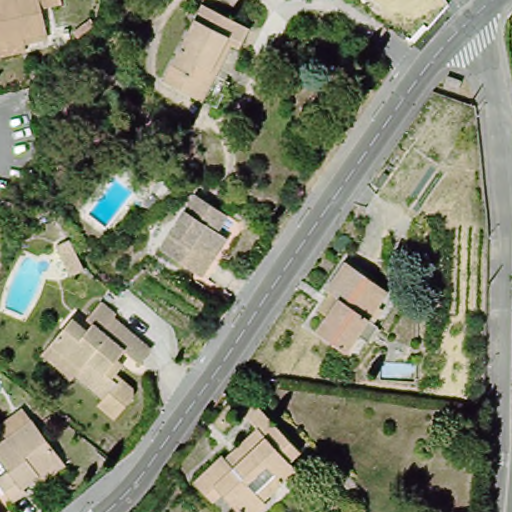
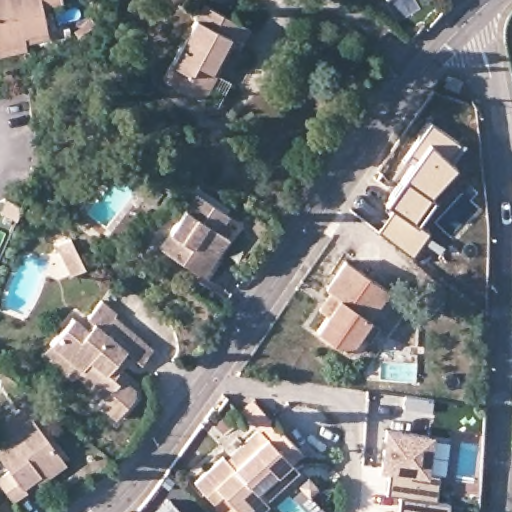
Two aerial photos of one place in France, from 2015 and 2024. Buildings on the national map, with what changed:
unchanged [(36,0),(41,21),(43,31),(20,35),(21,44),(0,48),(0,0),(36,0)]
unchanged [(158,75),(197,0),(199,0),(243,22),(232,43),(226,40),(211,68),(197,94),(158,75)]
unchanged [(448,76),(462,80),(460,91),(445,86),(448,76)]
new [(385,203),(415,161),(405,156),(428,121),(458,142),(460,140),(463,142),(448,160),(454,163),(427,193),(433,197),(415,222),(403,215),(391,208),(385,203)]
unchanged [(152,184),(140,174),(148,165),(160,175),(152,184)]
unchanged [(390,174),(381,186),(375,182),(385,169),(390,174)]
unchanged [(207,279),(191,269),(160,248),(195,194),(227,214),(216,230),(227,237),(214,257),(220,261),(207,279)]
new [(391,208),(417,224),(425,228),(428,231),(427,233),(445,247),(438,254),(422,241),(410,256),(376,230),(391,208)]
unchanged [(367,335),(358,328),(346,345),(318,326),(330,309),(320,302),(332,286),(328,284),(348,256),(390,284),(369,313),(378,319),(367,335)]
unchanged [(62,302),(75,312),(80,305),(77,303),(92,285),(105,297),(102,300),(125,320),(140,333),(129,346),(114,333),(106,342),(113,348),(106,357),(124,371),(125,380),(106,403),(88,390),(93,383),(65,359),(61,363),(32,339),(40,329),(62,302)]
unchanged [(252,512),(250,512),(223,486),(214,494),(196,476),(223,450),(226,452),(258,421),(242,404),(253,394),(270,411),(301,444),(290,455),(297,462),(284,475),(265,493),(268,496),(252,512)]
unchanged [(21,482),(25,487),(12,495),(0,478),(0,470),(8,464),(0,453),(0,437),(32,414),(60,453),(65,458),(37,478),(33,473),(21,482)]
new [(387,427),(430,433),(425,469),(440,471),(436,498),(400,493),(386,492),(390,466),(382,465),(387,427)]
new [(400,493),(436,498),(450,500),(448,512),(398,512),(400,493)]
new [(172,498),(186,512),(157,512),(172,498)]
new [(385,511),(393,512),(385,512),(385,511)]

